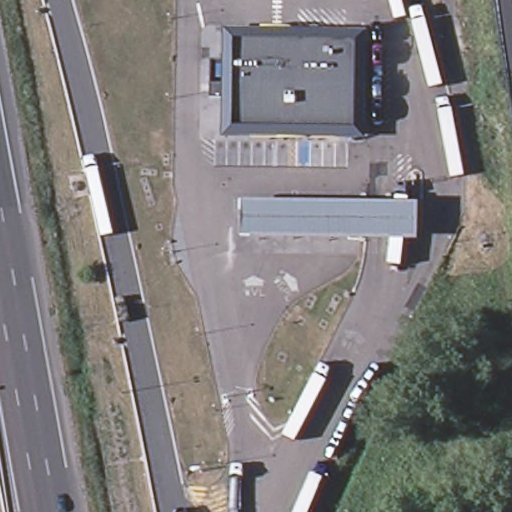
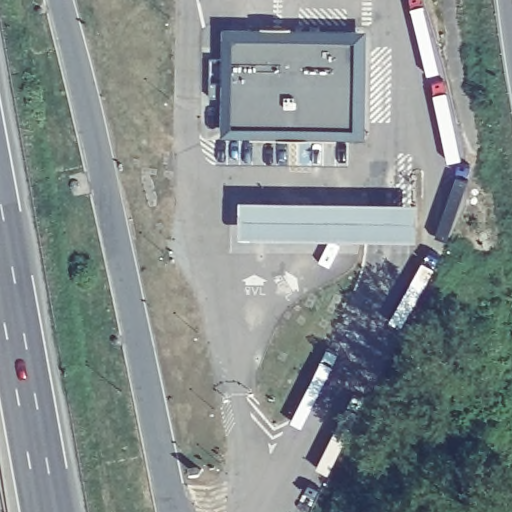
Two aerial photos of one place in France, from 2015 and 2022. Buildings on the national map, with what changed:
unchanged [(368,32),(366,139),(222,138),(224,29),(368,32)]
unchanged [(418,204),(417,241),(241,238),(241,202),(418,204)]

